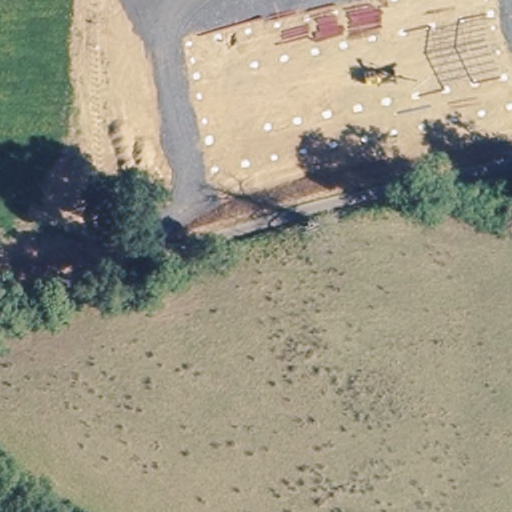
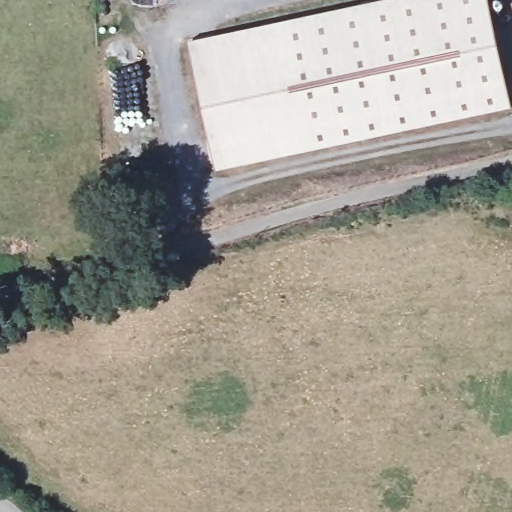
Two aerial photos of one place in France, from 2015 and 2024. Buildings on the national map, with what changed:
new [(511,109),(216,170),(189,41),(383,0),(489,0),(511,109)]

